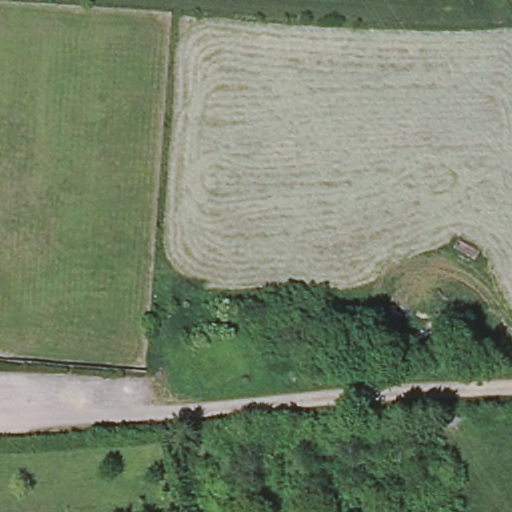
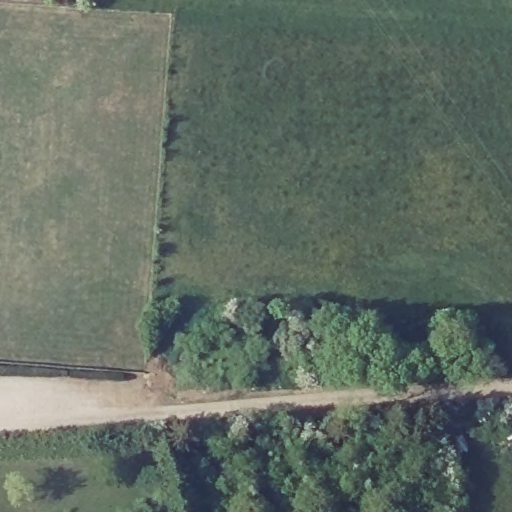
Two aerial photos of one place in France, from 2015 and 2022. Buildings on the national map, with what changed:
[]

